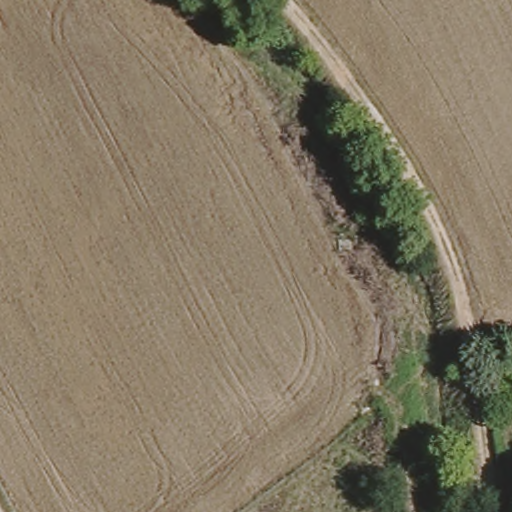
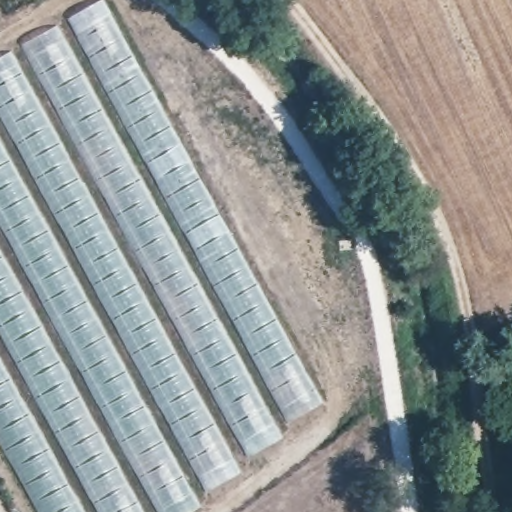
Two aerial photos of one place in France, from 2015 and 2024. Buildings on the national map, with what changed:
new [(0,21),(0,0),(37,0),(0,21)]
new [(181,512),(38,512),(0,444),(0,57),(100,0),(104,0),(325,402),(181,512)]

